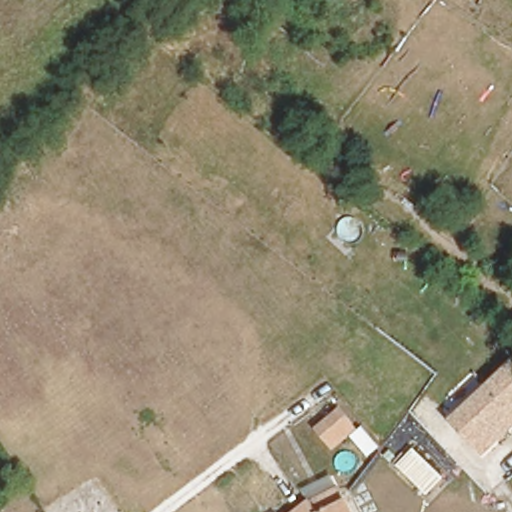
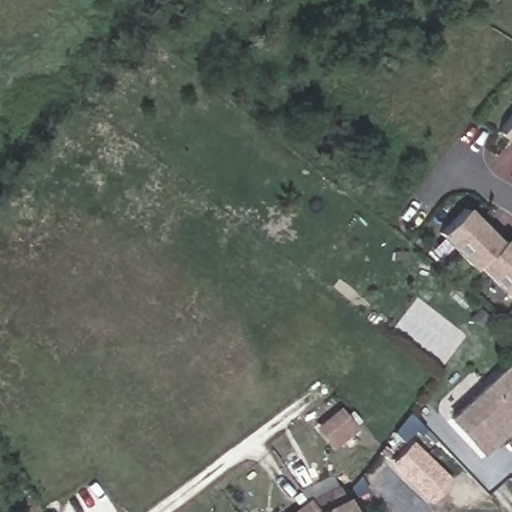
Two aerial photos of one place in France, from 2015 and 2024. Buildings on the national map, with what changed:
new [(497,133),(512,112),(512,143),(497,133)]
new [(512,246),(512,296),(509,298),(476,264),(471,268),(438,232),(465,206),(498,241),(503,237),(512,246)]
unchanged [(512,359),(512,419),(483,448),(451,416),(510,358),(512,359)]
unchanged [(413,442),(445,476),(426,495),(393,463),(413,442)]
unchanged [(275,506),(290,496),(297,507),(335,481),(351,512),(277,512),(275,506)]

